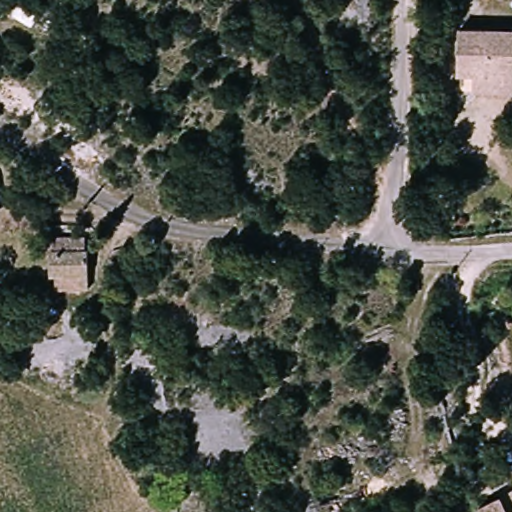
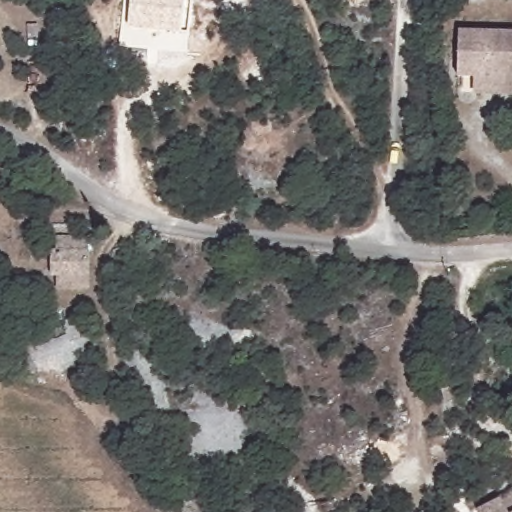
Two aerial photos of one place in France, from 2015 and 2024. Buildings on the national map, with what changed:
new [(182,33),(129,27),(132,0),(185,0),(182,33)]
unchanged [(457,73),(461,29),(512,34),(512,78),(457,73)]
unchanged [(58,287),(58,277),(54,277),(54,252),(92,252),(92,277),(92,287),(58,287)]
unchanged [(484,512),(512,499),(512,512),(484,512)]

